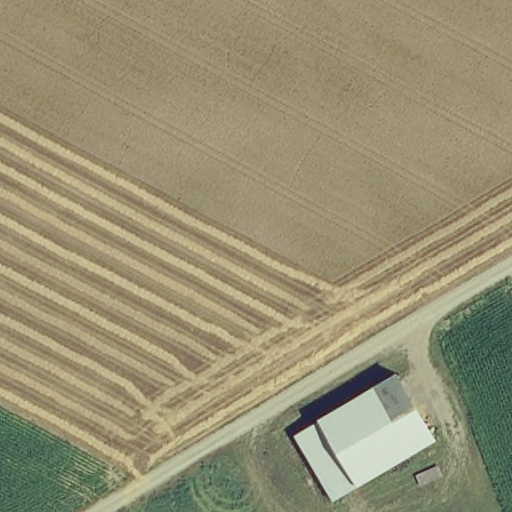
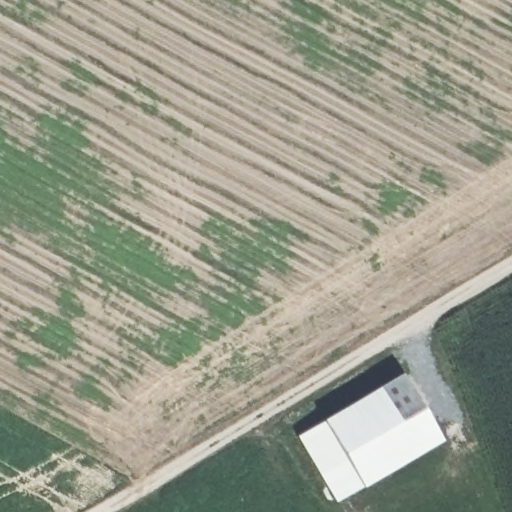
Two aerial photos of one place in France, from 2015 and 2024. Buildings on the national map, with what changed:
unchanged [(404,373),(443,437),(339,500),(300,435),(404,373)]

